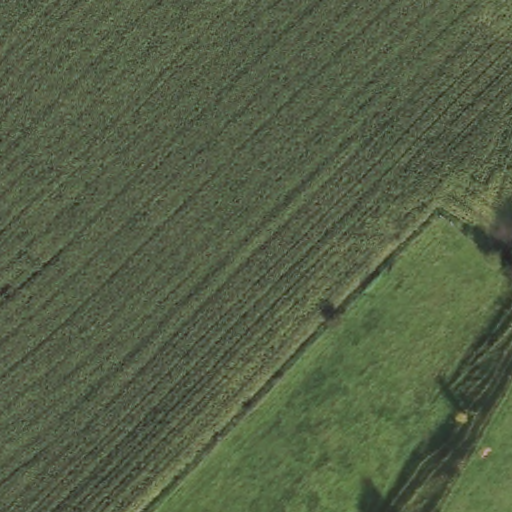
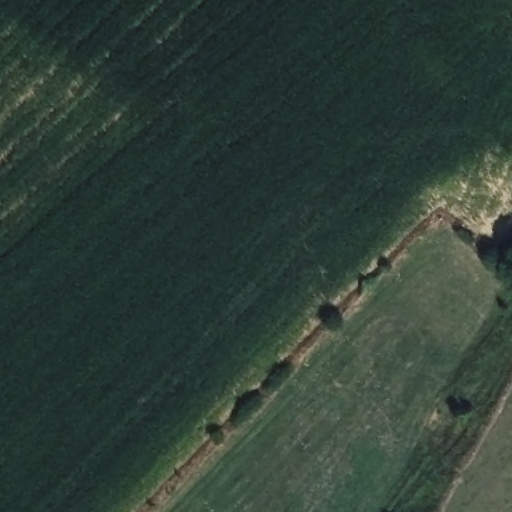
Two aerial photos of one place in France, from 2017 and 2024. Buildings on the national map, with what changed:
[]

